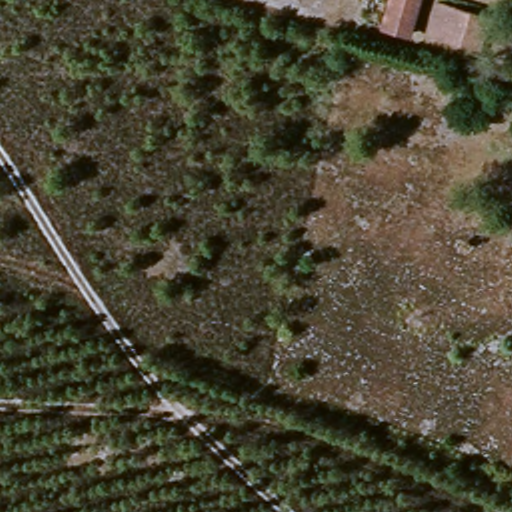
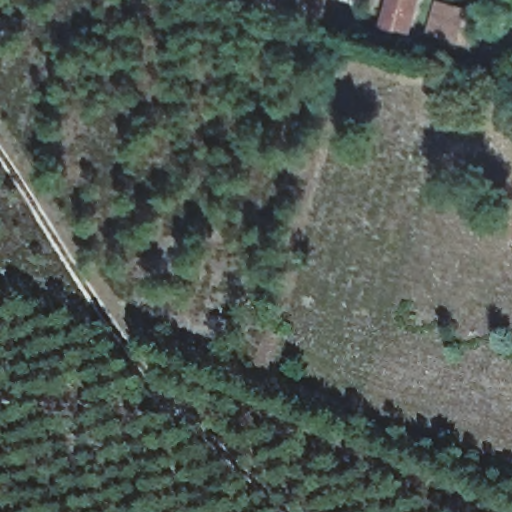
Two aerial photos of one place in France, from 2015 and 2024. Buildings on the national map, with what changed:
unchanged [(391,0),(418,0),(409,35),(383,29),(391,0)]
unchanged [(432,2),(486,19),(479,52),(425,38),(432,2)]

